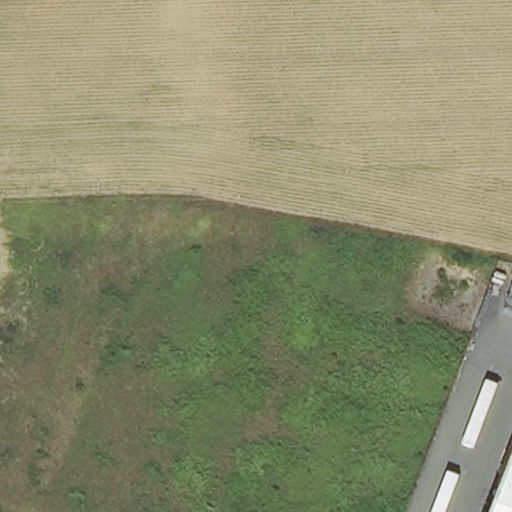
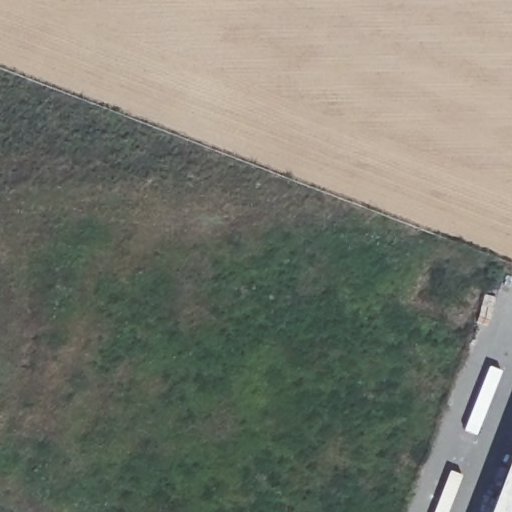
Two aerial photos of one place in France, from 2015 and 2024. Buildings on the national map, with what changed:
unchanged [(512,512),(485,512),(512,442),(512,512)]

